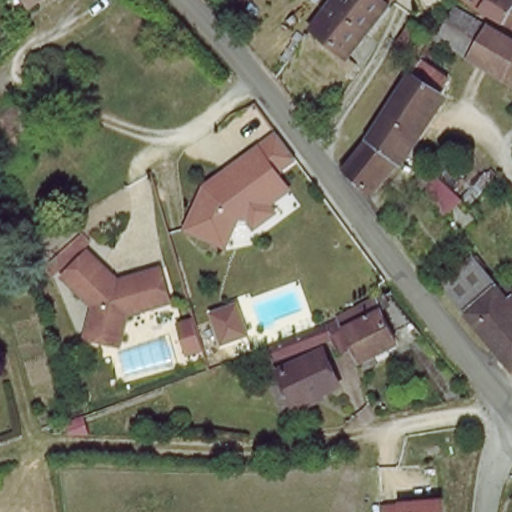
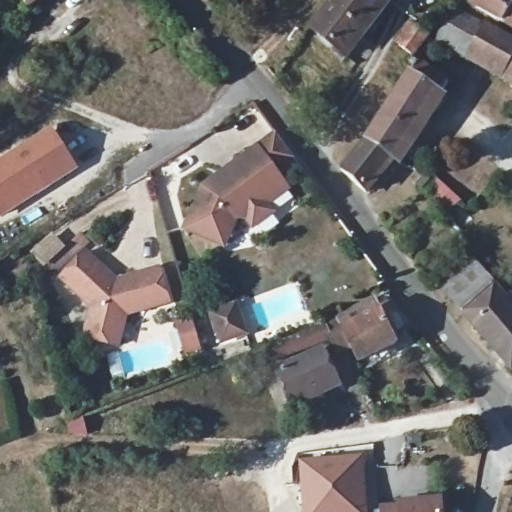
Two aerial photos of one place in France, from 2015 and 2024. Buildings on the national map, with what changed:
unchanged [(30,0),(44,0),(35,7),(30,0)]
unchanged [(367,30),(358,23),(332,3),(333,1),(334,0),(389,0),(391,1),(367,30)]
unchanged [(389,0),(391,0),(391,1),(389,0)]
unchanged [(479,5),(471,0),(512,0),(512,25),(489,12),(479,5)]
unchanged [(350,54),(314,27),(332,3),(358,23),(367,30),(350,54)]
unchanged [(438,35),(451,15),(457,6),(501,32),(512,39),(512,82),(435,38),(438,35)]
unchanged [(420,55),(402,43),(409,32),(405,28),(410,19),(416,24),(432,36),(420,55)]
unchanged [(375,127),(391,103),(400,89),(413,70),(422,57),(453,77),(443,92),(399,154),(375,127)]
new [(52,127),(79,169),(0,217),(0,159),(52,127)]
unchanged [(366,192),(348,166),(374,128),(375,127),(399,154),(366,192)]
unchanged [(208,181),(275,135),(296,162),(285,170),(297,190),(276,204),(281,212),(256,230),(244,219),(228,249),(186,229),(208,181)]
demolished [(474,147),(492,159),(464,189),(450,175),(474,147)]
new [(483,160),(501,173),(472,203),(458,189),(483,160)]
unchanged [(436,170),(463,199),(448,213),(420,188),(436,170)]
new [(51,232),(66,248),(44,268),(29,252),(51,232)]
unchanged [(131,318),(125,348),(86,342),(90,306),(62,277),(57,280),(48,270),(85,234),(94,243),(88,249),(119,278),(163,269),(174,304),(131,318)]
unchanged [(439,277),(468,253),(478,246),(499,276),(482,289),(461,303),(439,277)]
unchanged [(511,283),(512,282),(512,292),(511,292),(512,294),(512,360),(511,361),(461,303),(482,289),(499,276),(506,286),(511,283)]
unchanged [(387,294),(397,288),(418,316),(407,323),(386,294),(387,294)]
unchanged [(381,297),(409,337),(367,365),(357,346),(343,319),(381,297)]
unchanged [(224,344),(213,312),(241,305),(252,338),(224,344)]
unchanged [(289,338),(343,319),(357,346),(342,353),(334,336),(279,358),(273,360),(269,346),(289,338)]
unchanged [(323,349),(342,383),(296,404),(279,371),(283,369),(323,349)]
unchanged [(86,421),(87,435),(79,435),(77,424),(86,421)]
new [(361,455),(364,512),(299,512),(295,460),(361,455)]
unchanged [(446,512),(377,512),(377,505),(402,504),(401,500),(445,498),(446,512)]

